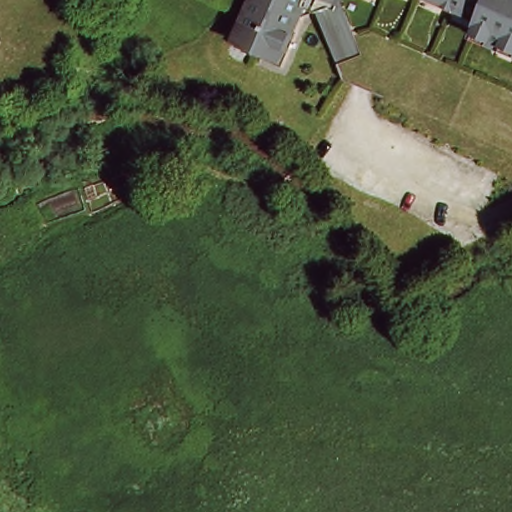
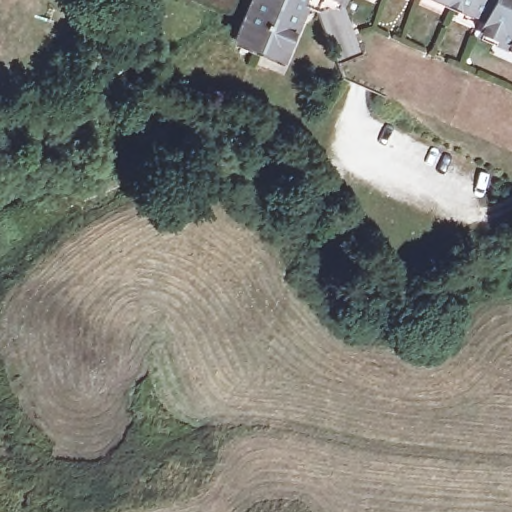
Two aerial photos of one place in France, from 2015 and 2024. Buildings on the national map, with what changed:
unchanged [(285,60),(234,40),(253,0),(314,0),(285,60)]
unchanged [(512,57),(471,40),(481,20),(433,0),(512,0),(512,57)]

